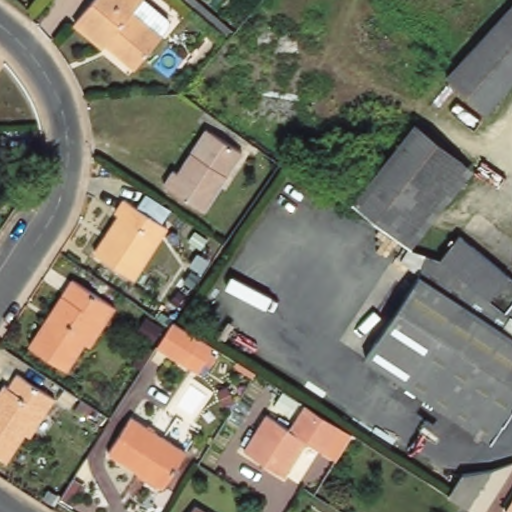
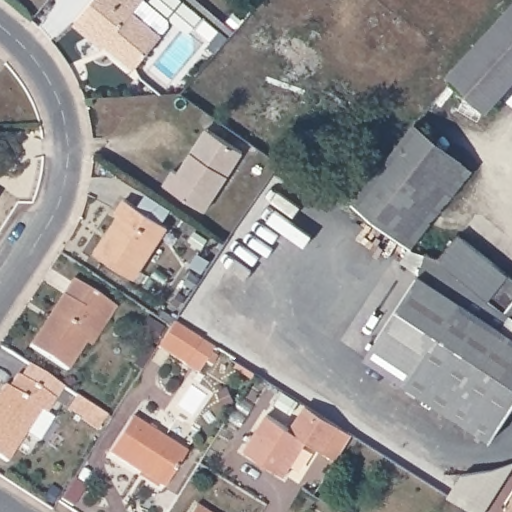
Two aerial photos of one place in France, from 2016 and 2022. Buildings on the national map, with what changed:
unchanged [(135,9),(162,31),(135,64),(107,41),(104,45),(75,21),(92,0),(141,0),(135,9)]
unchanged [(443,79),(512,3),(512,78),(479,114),(443,79)]
unchanged [(473,170),(412,250),(353,207),(416,126),(473,170)]
unchanged [(197,151),(212,128),(244,148),(206,210),(163,184),(173,169),(179,171),(193,150),(197,151)]
unchanged [(115,216),(125,200),(168,227),(135,278),(95,253),(117,218),(115,216)]
unchanged [(452,240),(512,280),(512,302),(504,312),(440,270),(435,266),(452,240)]
unchanged [(435,266),(440,270),(378,368),(365,360),(429,262),(435,266)]
unchanged [(512,318),(512,409),(491,442),(378,368),(440,270),(504,312),(512,318)]
unchanged [(110,308),(99,326),(94,323),(62,373),(24,348),(69,281),(110,308)]
unchanged [(512,302),(512,318),(504,312),(512,302)]
unchanged [(179,326),(207,344),(190,369),(163,351),(175,331),(179,326)]
unchanged [(10,390),(19,377),(56,400),(47,413),(44,411),(9,464),(0,458),(0,398),(7,387),(10,390)]
unchanged [(286,427),(303,402),(336,423),(320,449),(305,440),(283,474),(242,448),(264,413),(286,427)]
unchanged [(186,453),(163,490),(109,456),(132,420),(186,453)]
unchanged [(452,495),(465,475),(466,473),(479,473),(493,471),(507,468),(512,466),(512,475),(498,495),(487,512),(477,512),(470,507),(452,495)]
unchanged [(192,512),(195,508),(200,512),(192,512)]
unchanged [(512,512),(511,512),(512,510),(512,512)]

